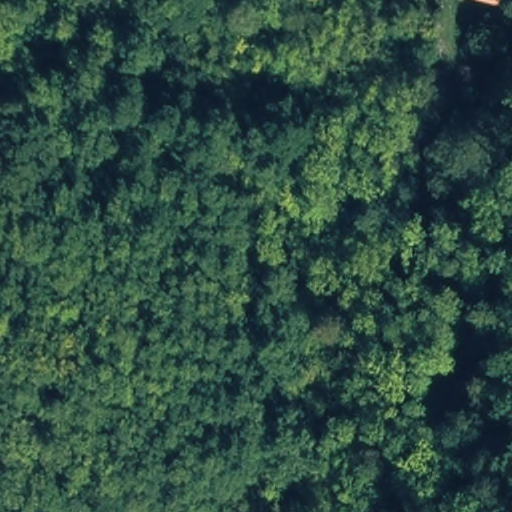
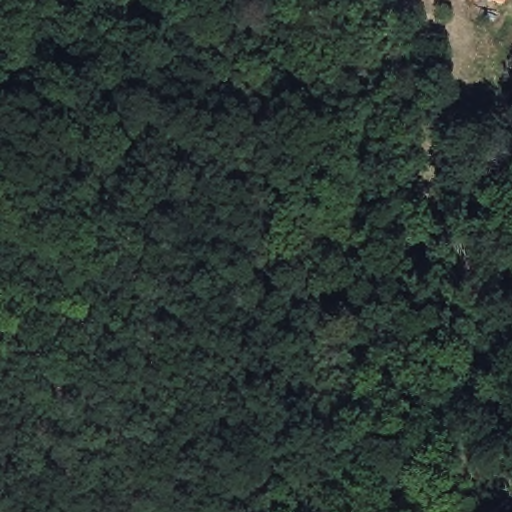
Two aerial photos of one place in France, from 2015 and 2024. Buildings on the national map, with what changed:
unchanged [(478,0),(505,0),(503,6),(478,0)]

